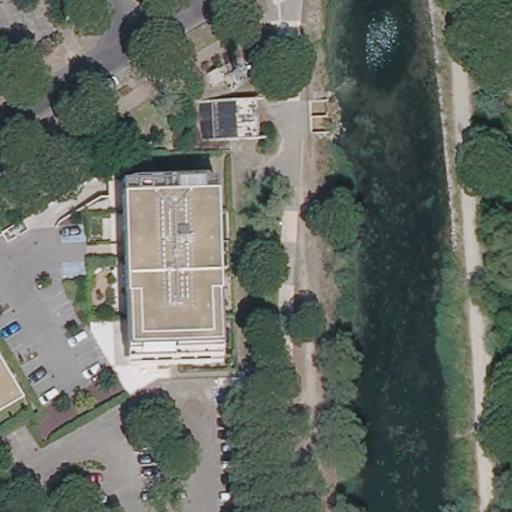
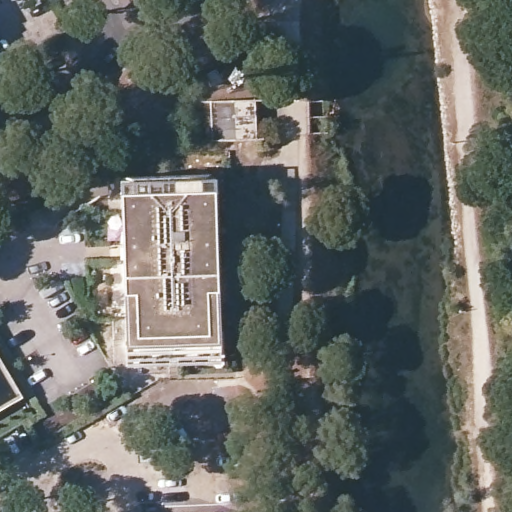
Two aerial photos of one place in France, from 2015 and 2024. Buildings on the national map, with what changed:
unchanged [(222,75),(211,81),(204,70),(215,64),(222,75)]
unchanged [(193,104),(255,100),(258,140),(196,144),(193,104)]
unchanged [(217,174),(219,341),(130,345),(128,177),(217,174)]
unchanged [(0,412),(0,357),(25,398),(0,412)]

